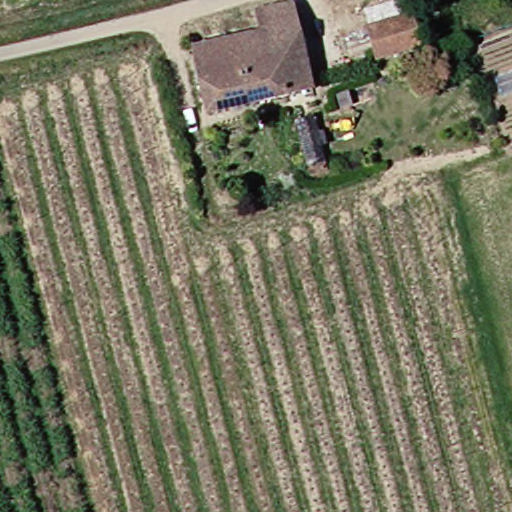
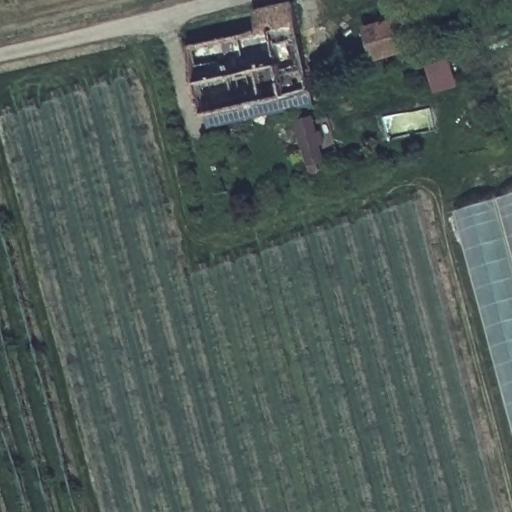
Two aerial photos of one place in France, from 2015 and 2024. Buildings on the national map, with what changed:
unchanged [(303,90),(201,116),(185,45),(252,28),(246,4),(265,0),(283,0),(303,90)]
unchanged [(371,59),(364,31),(403,21),(410,50),(371,59)]
new [(512,198),(512,437),(452,215),(512,198)]

